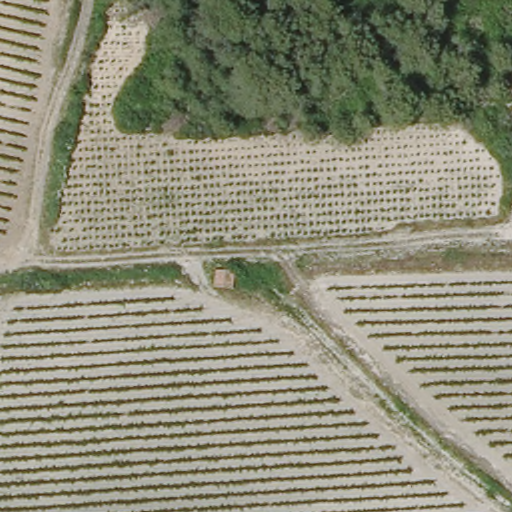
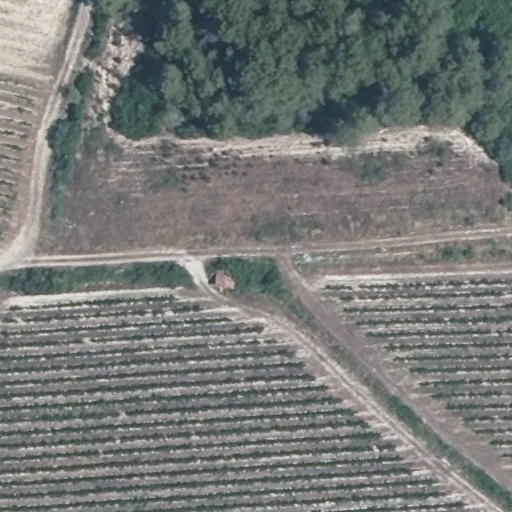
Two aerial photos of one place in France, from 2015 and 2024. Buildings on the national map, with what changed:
unchanged [(235,275),(233,290),(217,288),(219,273),(235,275)]

